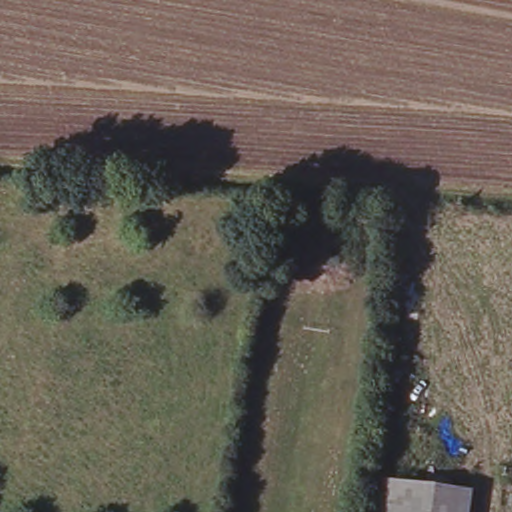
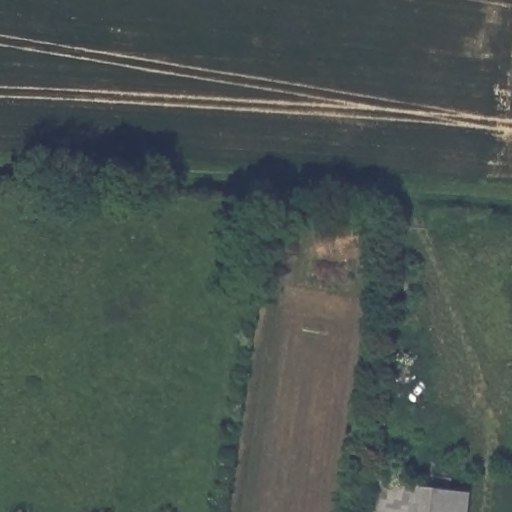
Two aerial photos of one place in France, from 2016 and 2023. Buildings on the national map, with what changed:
unchanged [(453,512),(356,512),(364,456),(460,466),(453,512)]
unchanged [(470,512),(453,512),(460,466),(476,467),(470,512)]

